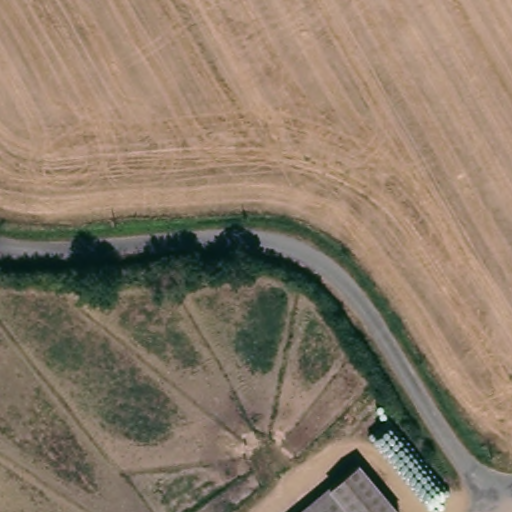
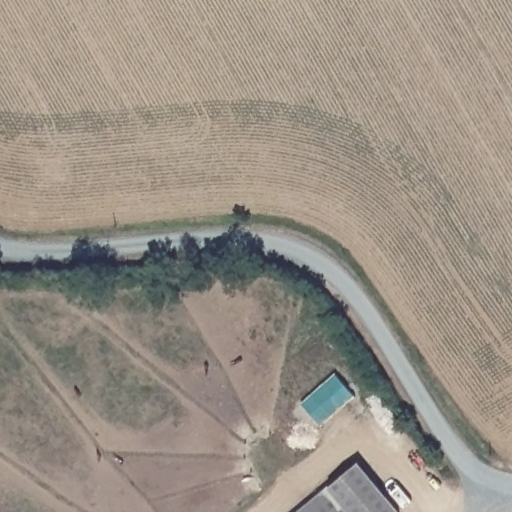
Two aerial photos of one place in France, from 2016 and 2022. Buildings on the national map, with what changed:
unchanged [(396,512),(304,512),(359,466),(396,512)]

